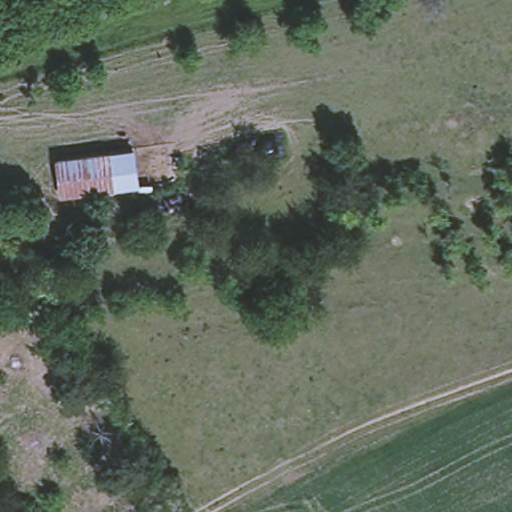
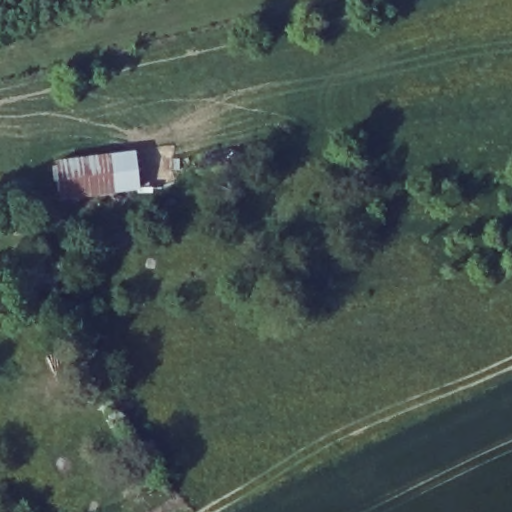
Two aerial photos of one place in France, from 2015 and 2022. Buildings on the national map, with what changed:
unchanged [(134,152),(139,188),(63,198),(59,161),(134,152)]

